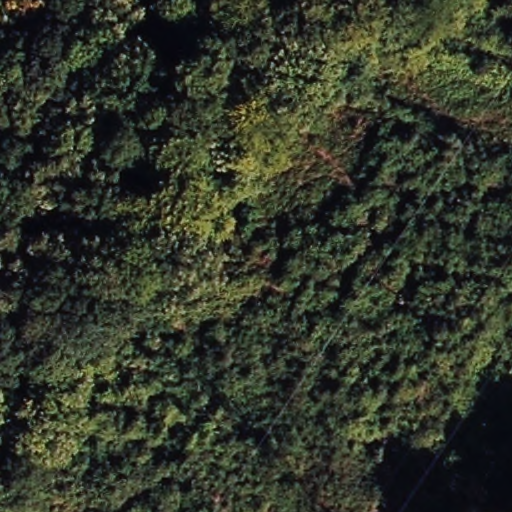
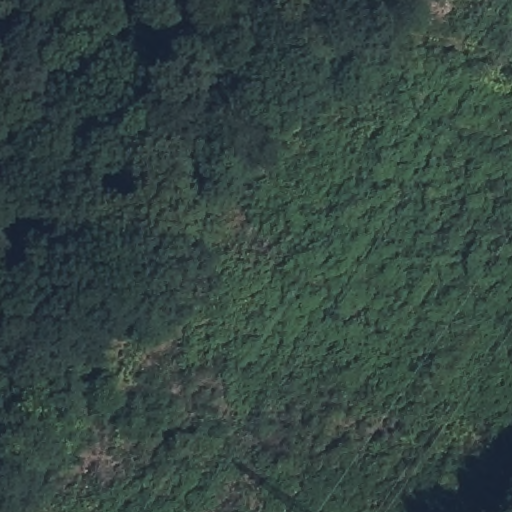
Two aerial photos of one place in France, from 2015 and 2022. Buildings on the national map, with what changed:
[]

